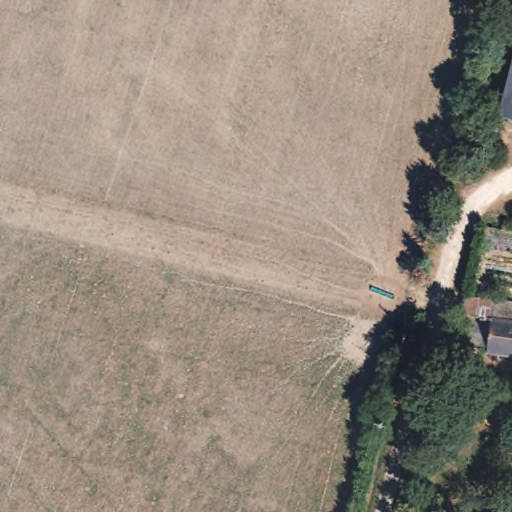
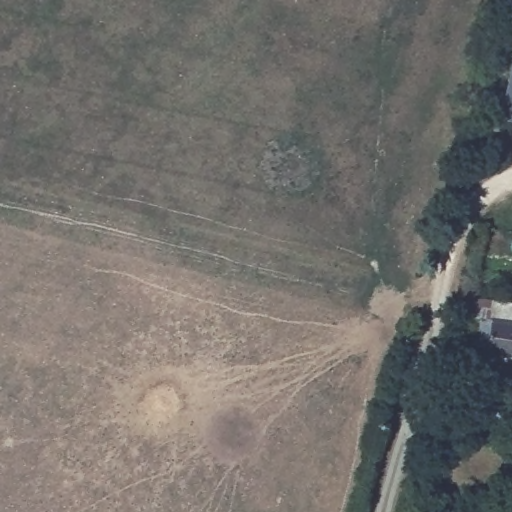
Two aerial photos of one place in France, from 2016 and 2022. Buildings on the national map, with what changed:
unchanged [(511,121),(501,119),(512,71),(512,122),(511,121)]
unchanged [(490,358),(490,350),(471,349),(454,348),(455,324),(466,324),(468,307),(482,308),(494,309),(512,310),(512,360),(490,358)]

